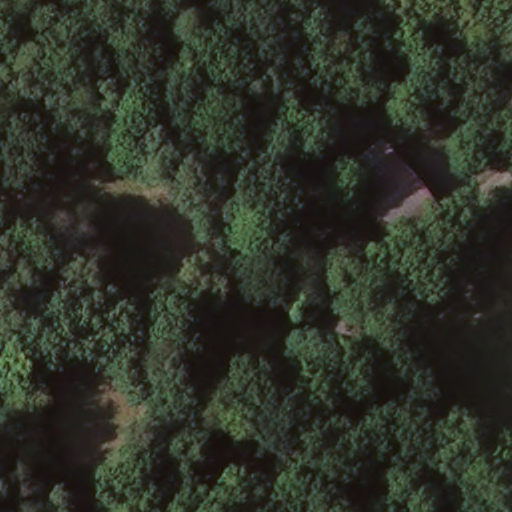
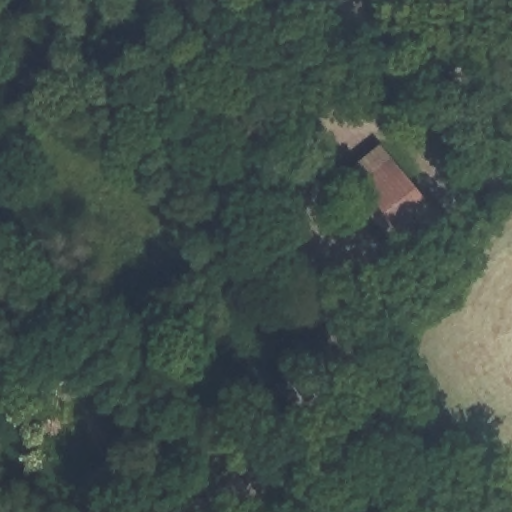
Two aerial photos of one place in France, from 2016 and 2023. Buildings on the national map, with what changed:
unchanged [(442,218),(395,253),(331,181),(380,145),(442,218)]

